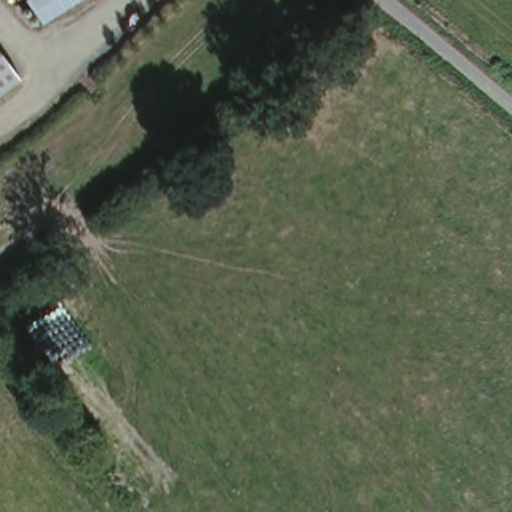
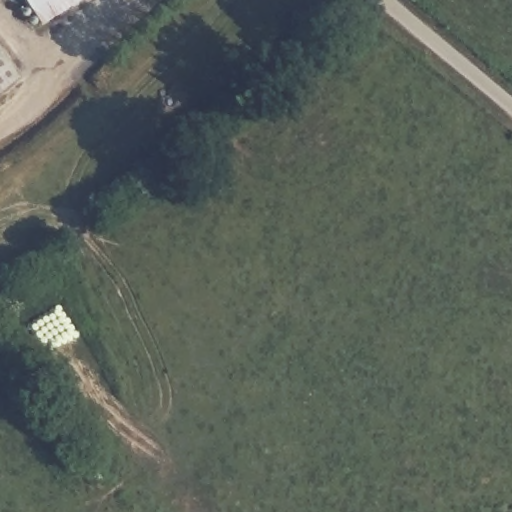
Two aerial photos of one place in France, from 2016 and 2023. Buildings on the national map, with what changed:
unchanged [(27,0),(85,0),(45,27),(27,0)]
unchanged [(0,96),(0,45),(25,78),(0,96)]

